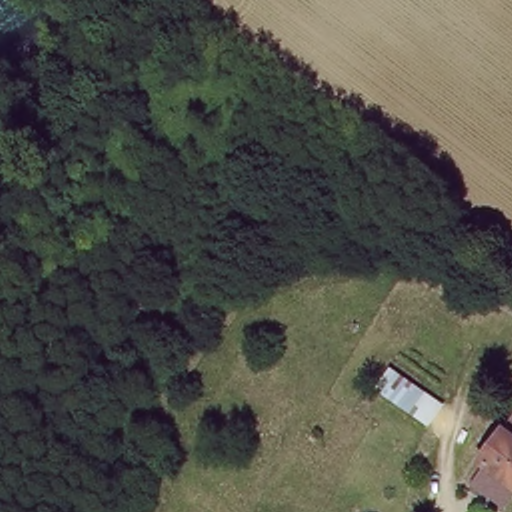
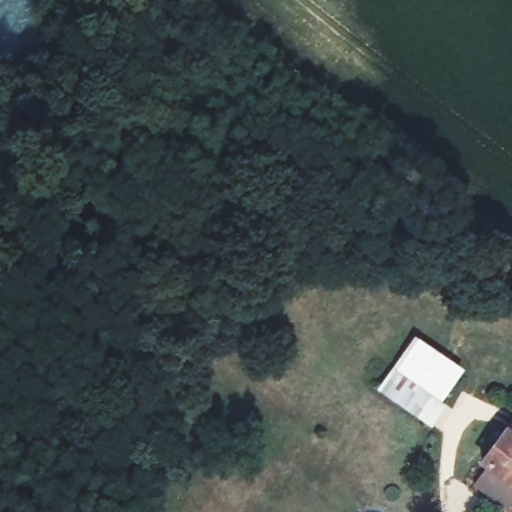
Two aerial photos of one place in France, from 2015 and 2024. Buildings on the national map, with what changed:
new [(415,337),(464,370),(442,401),(448,405),(431,428),(375,390),(415,337)]
unchanged [(492,478),(467,459),(512,398),(512,451),(492,478)]
unchanged [(492,478),(512,451),(512,494),(492,478)]

